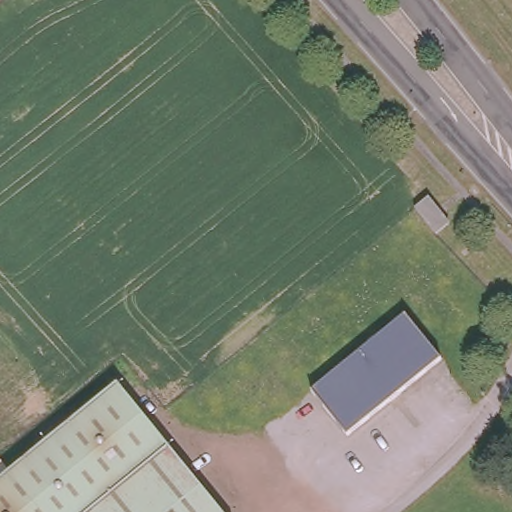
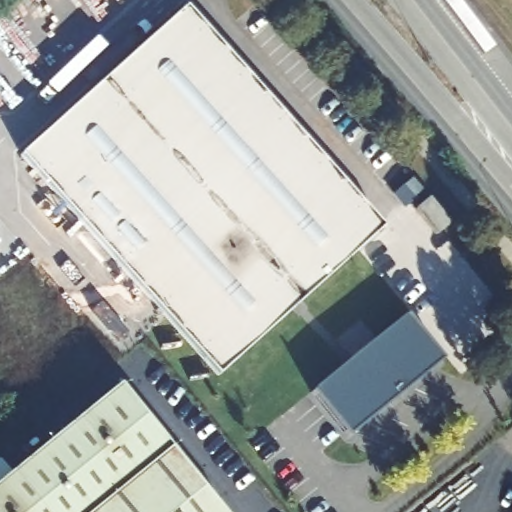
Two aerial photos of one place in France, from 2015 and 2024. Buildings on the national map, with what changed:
new [(385,235),(219,382),(18,166),(185,17),(385,235)]
unchanged [(445,214),(429,224),(411,201),(425,190),(445,214)]
unchanged [(405,312),(441,357),(348,435),(311,391),(405,312)]
unchanged [(118,381),(173,447),(228,512),(0,512),(0,479),(118,381)]

